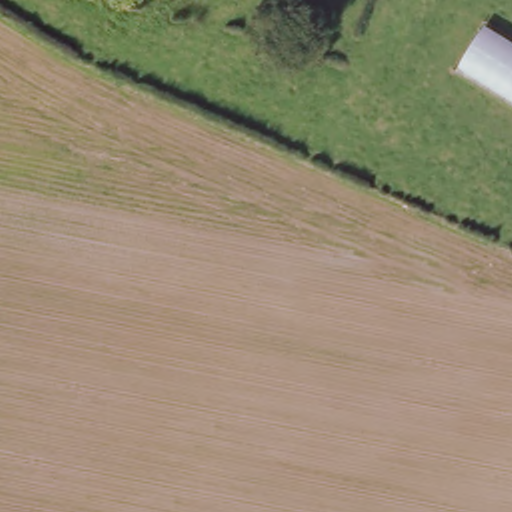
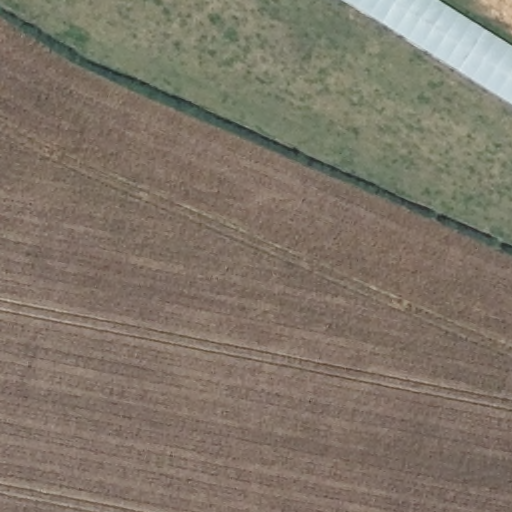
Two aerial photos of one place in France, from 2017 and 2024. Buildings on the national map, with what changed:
new [(347,0),(439,0),(487,30),(460,71),(347,0)]
unchanged [(487,30),(512,46),(512,105),(459,72),(487,30)]

